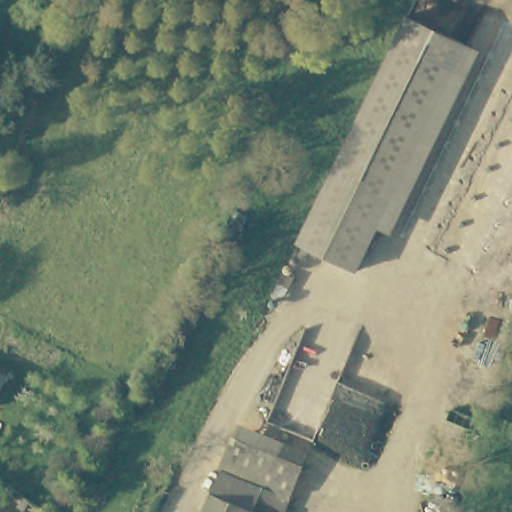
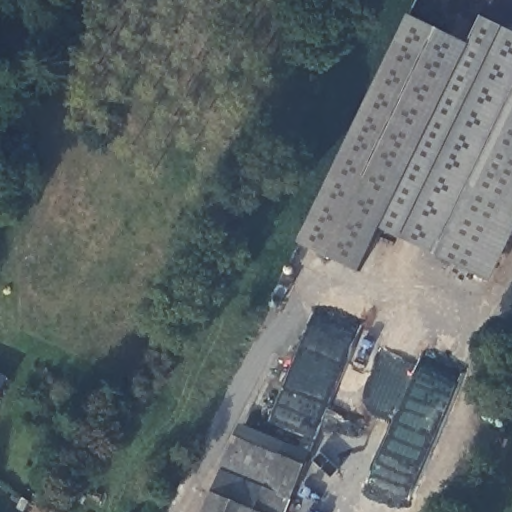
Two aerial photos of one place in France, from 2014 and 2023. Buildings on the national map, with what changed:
new [(512,31),(512,244),(492,283),(381,230),(467,53),(485,18),(512,31)]
unchanged [(320,261),(296,249),(406,23),(432,36),(467,53),(465,58),(357,279),(320,261)]
unchanged [(6,371),(0,383),(0,368),(6,371)]
unchanged [(232,435),(300,463),(279,512),(237,512),(205,494),(232,435)]
unchanged [(237,512),(196,512),(205,494),(237,512)]

